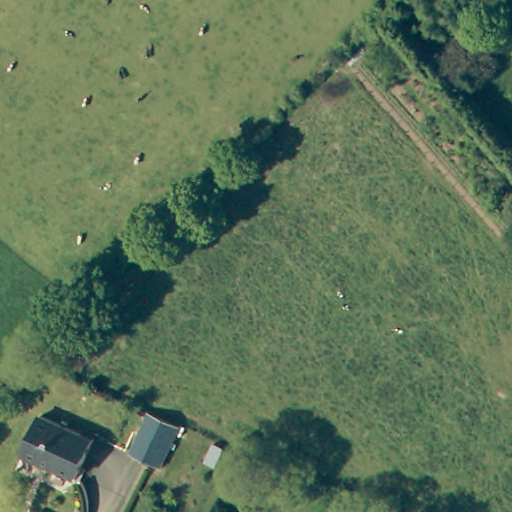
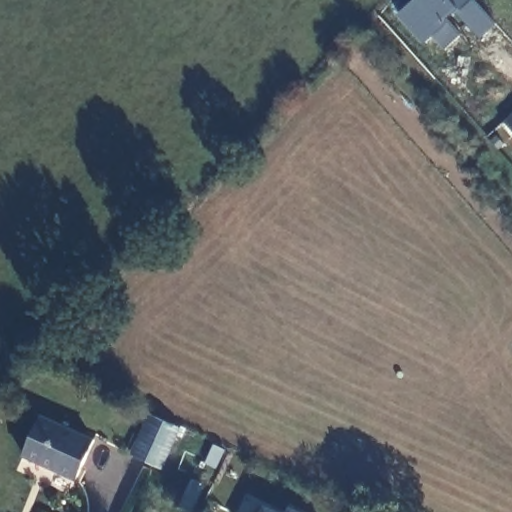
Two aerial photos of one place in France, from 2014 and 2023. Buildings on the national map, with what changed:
new [(415,0),(473,0),(496,25),(471,47),(460,36),(444,50),(432,37),(425,43),(399,15),(415,0)]
new [(512,114),(512,133),(503,123),(512,114)]
unchanged [(179,428),(160,470),(131,457),(150,414),(179,428)]
unchanged [(41,419),(92,443),(74,482),(22,458),(41,419)]
unchanged [(228,450),(217,472),(204,466),(215,444),(228,450)]
new [(280,512),(260,512),(264,505),(280,512)]
new [(300,512),(286,512),(289,507),(300,512)]

